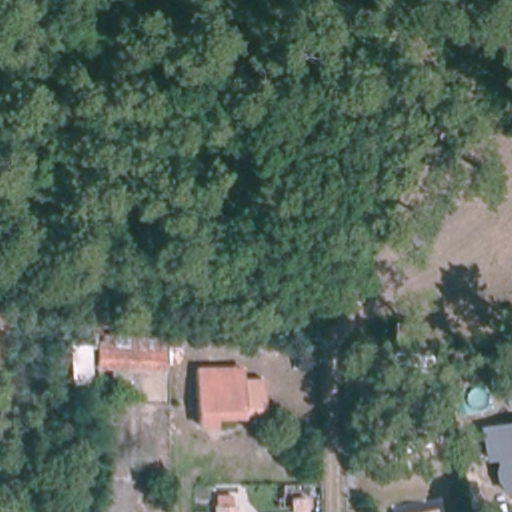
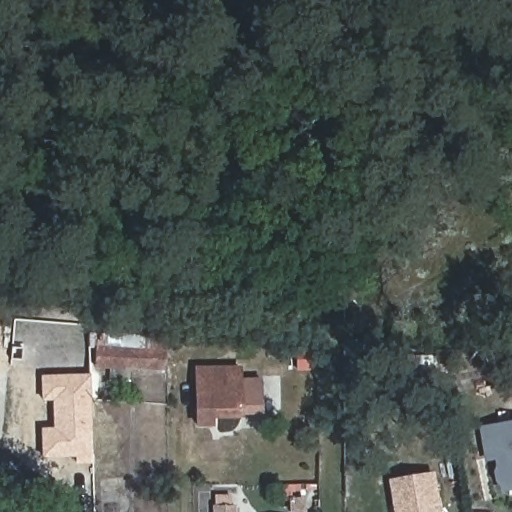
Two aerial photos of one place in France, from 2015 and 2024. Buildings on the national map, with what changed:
unchanged [(360,268),(360,305),(340,304),(340,268),(360,268)]
unchanged [(263,272),(295,278),(292,294),(260,288),(263,272)]
unchanged [(438,322),(499,317),(500,332),(440,337),(438,322)]
unchanged [(412,342),(401,342),(401,323),(412,323),(412,342)]
unchanged [(99,335),(161,337),(160,368),(95,366),(96,346),(90,345),(90,331),(90,324),(99,325),(99,335)]
unchanged [(207,417),(207,424),(192,424),(191,408),(191,367),(205,367),(236,366),(236,378),(256,377),(256,407),(236,408),(237,417),(207,417)]
new [(76,466),(76,457),(42,459),(41,428),(54,428),(51,402),(42,402),(42,376),(90,375),(91,465),(76,466)]
unchanged [(498,484),(494,482),(491,467),(495,465),(494,461),(484,462),(478,426),(512,420),(512,490),(500,492),(498,484)]
unchanged [(124,472),(122,512),(95,512),(97,471),(124,472)]
new [(435,471),(441,512),(392,512),(387,479),(435,471)]
unchanged [(212,512),(212,502),(240,504),(240,512),(212,512)]
demolished [(435,512),(428,512),(435,511),(435,512)]

